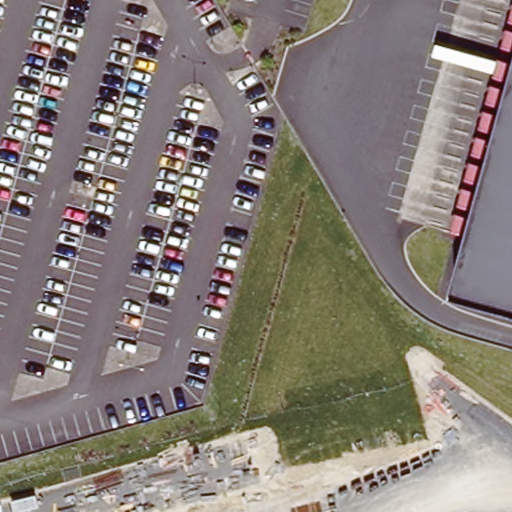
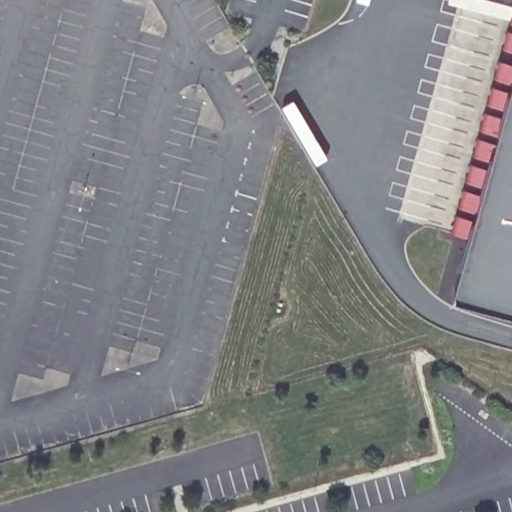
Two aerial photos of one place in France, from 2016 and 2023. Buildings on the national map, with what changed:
unchanged [(512,29),(512,41),(509,40),(512,29)]
unchanged [(506,54),(512,56),(512,74),(500,70),(506,54)]
unchanged [(471,181),(484,186),(487,178),(472,173),(477,157),(491,162),(494,152),(479,147),(484,131),(499,135),(502,125),(486,121),(492,104),(506,108),(508,100),(493,96),(499,80),(512,84),(512,301),(457,285),(472,230),(458,225),(463,206),(478,211),(480,202),(465,197),(471,181)]

